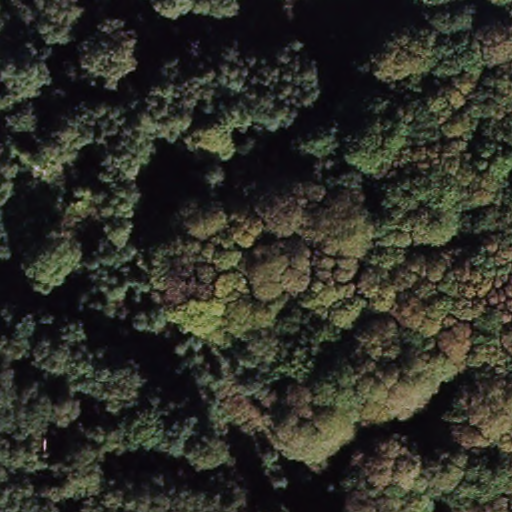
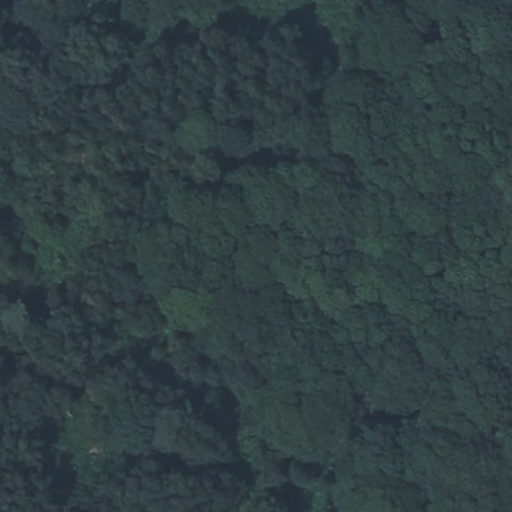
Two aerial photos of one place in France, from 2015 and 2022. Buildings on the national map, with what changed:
unchanged [(213,112),(242,135),(217,160),(187,139),(213,112)]

